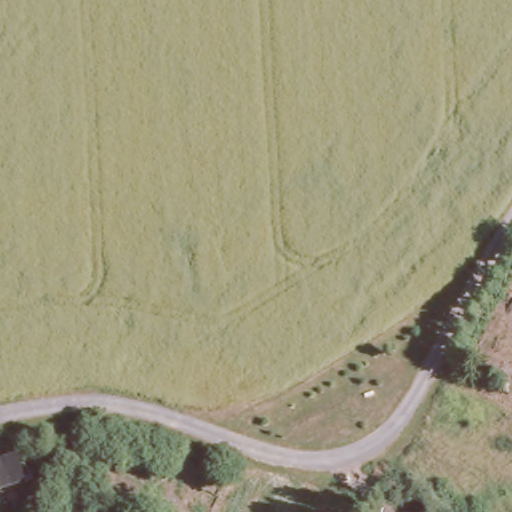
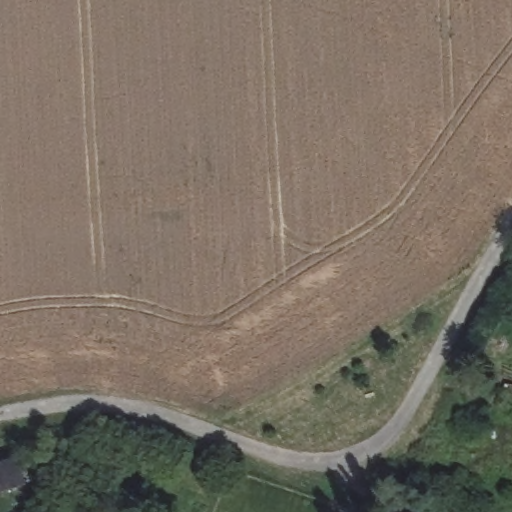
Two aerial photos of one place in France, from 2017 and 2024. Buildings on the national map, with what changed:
unchanged [(0,487),(0,456),(12,453),(21,482),(0,487)]

